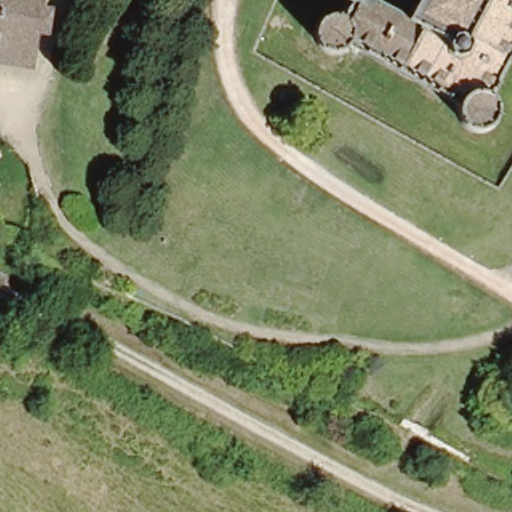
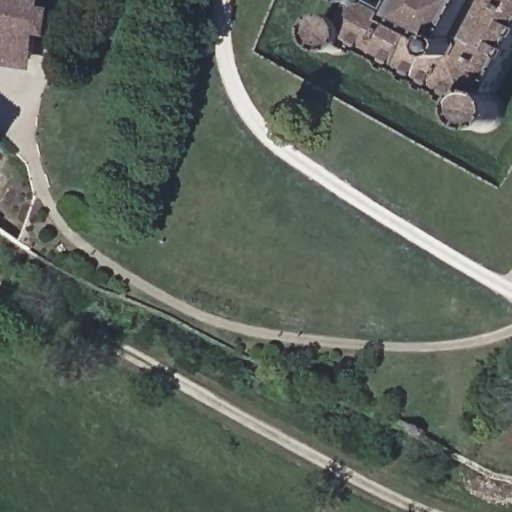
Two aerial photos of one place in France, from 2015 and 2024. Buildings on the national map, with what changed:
unchanged [(28,63),(0,59),(0,0),(42,0),(28,63)]
unchanged [(498,84),(502,89),(505,95),(505,101),(504,107),(501,113),(497,118),(492,122),(486,124),(480,125),(473,124),(468,121),(463,117),(460,112),(457,106),(457,100),(457,96),(357,42),(351,46),(345,49),(339,50),(332,50),(326,47),(321,44),(316,39),(313,33),(312,26),(313,20),(317,15),(322,10),(328,7),(335,6),(341,7),(347,9),(350,4),(346,0),(377,0),(412,20),(424,0),(512,0),(512,59),(498,84)]
unchanged [(0,154),(1,155),(0,157),(0,154)]

